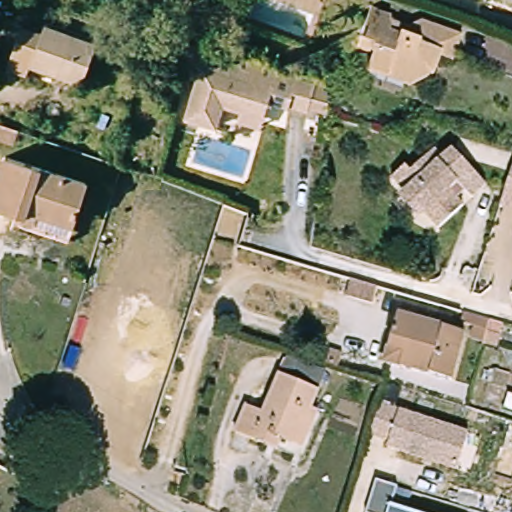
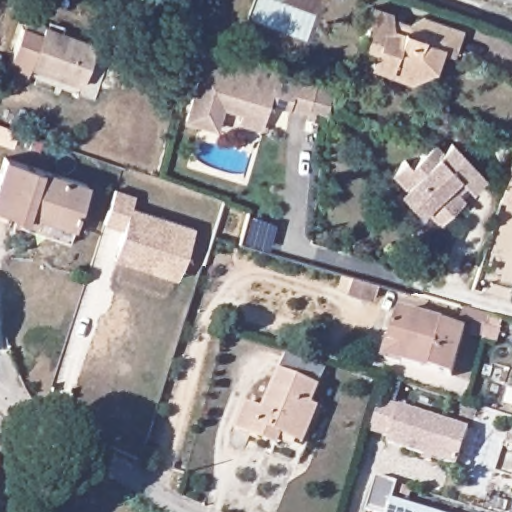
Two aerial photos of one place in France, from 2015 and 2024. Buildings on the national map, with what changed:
unchanged [(421,21),(432,10),(471,25),(462,47),(444,41),(434,65),(413,71),(377,56),(384,38),(366,30),(376,4),(421,21)]
unchanged [(100,50),(85,89),(34,69),(31,76),(12,68),(28,28),(47,35),(49,29),(100,50)]
unchanged [(250,106),(246,111),(228,104),(221,126),(191,116),(207,67),(190,61),(196,45),(296,79),(301,80),(336,92),(333,114),(315,109),(313,114),(295,108),(294,110),(291,109),(290,108),(274,103),(271,113),(266,128),(243,120),(246,110),(248,111),(250,106)]
new [(19,114),(10,134),(0,130),(0,106),(19,114)]
unchanged [(386,179),(399,166),(404,173),(428,152),(436,160),(446,151),(479,188),(465,200),(455,190),(447,197),(456,208),(431,229),(386,179)]
unchanged [(28,227),(30,219),(0,208),(0,194),(13,156),(92,190),(76,227),(69,243),(28,227)]
unchanged [(512,172),(512,203),(503,199),(512,172)]
new [(125,231),(106,225),(115,193),(135,199),(132,211),(195,229),(182,275),(180,280),(115,262),(121,246),(125,231)]
unchanged [(402,309),(470,328),(474,309),(506,317),(500,344),(469,335),(458,377),(387,359),(402,309)]
unchanged [(250,403),(265,408),(283,370),(291,352),(332,369),(325,388),(318,404),(326,408),(309,446),(287,439),(282,448),(239,431),(250,403)]
unchanged [(376,401),(464,430),(453,464),(384,442),(386,436),(367,430),(376,401)]
unchanged [(5,461),(0,474),(0,459),(5,461)]
unchanged [(362,509),(372,476),(377,477),(394,482),(388,501),(424,512),(370,512),(362,509)]

